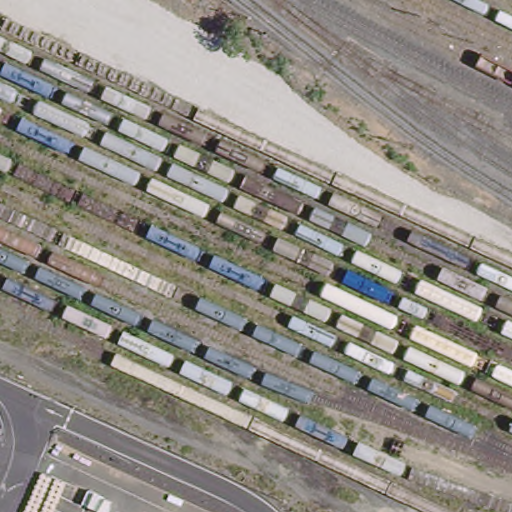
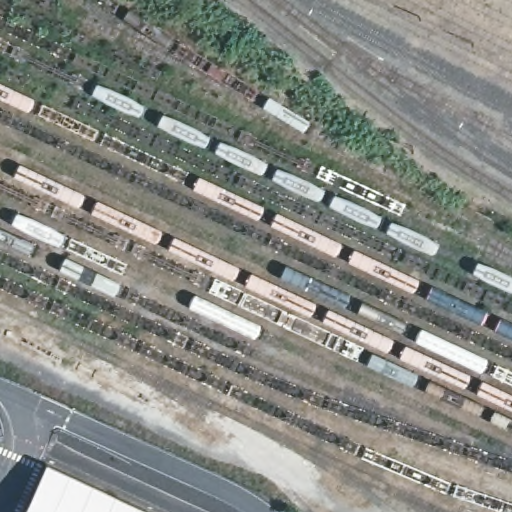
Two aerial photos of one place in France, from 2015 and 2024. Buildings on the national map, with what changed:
new [(148,512),(25,512),(47,465),(148,512)]

